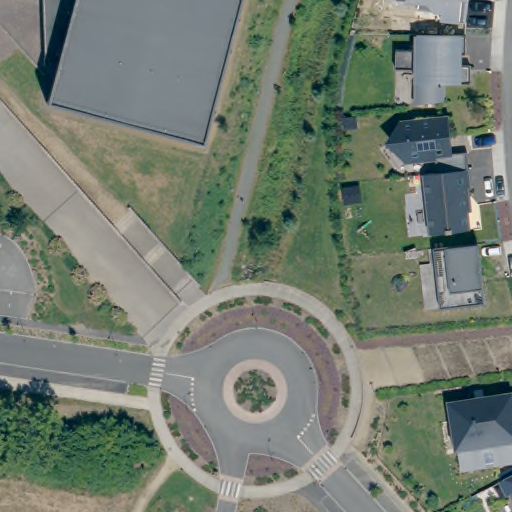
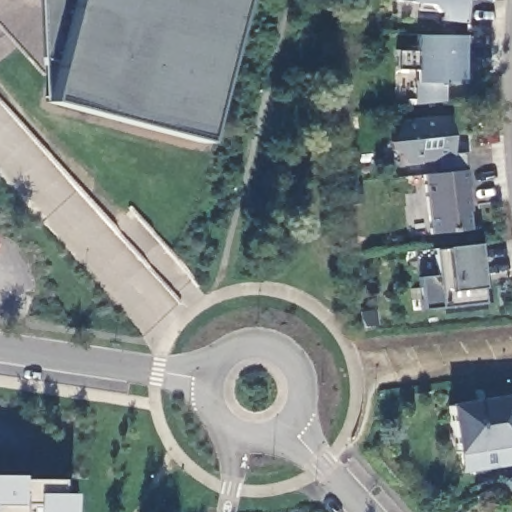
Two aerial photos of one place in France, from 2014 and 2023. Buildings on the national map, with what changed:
unchanged [(237,0),(199,141),(47,100),(43,0),(237,0)]
unchanged [(457,22),(440,20),(441,13),(432,12),(418,10),(419,5),(395,1),(395,0),(467,0),(464,22),(457,22)]
unchanged [(416,70),(395,70),(395,50),(416,50),(416,35),(465,36),(465,55),(460,54),(460,66),(470,66),(470,84),(442,84),(442,102),(436,103),(415,105),(416,70)]
unchanged [(436,173),(434,157),(403,160),(391,142),(399,122),(447,116),(451,154),(466,152),(468,170),(436,173)]
unchanged [(468,170),(470,188),(464,188),(469,230),(429,234),(422,174),(436,173),(468,170)]
unchanged [(439,308),(433,249),(448,247),(477,244),(479,259),(484,303),(439,308)]
unchanged [(457,455),(455,455),(448,408),(512,398),(512,467),(504,468),(476,473),(463,475),(460,455),(457,455)]
new [(14,474),(14,479),(55,479),(54,494),(65,494),(65,512),(0,512),(0,475),(14,474)]
unchanged [(512,497),(511,495),(506,498),(498,483),(512,477),(512,497)]

